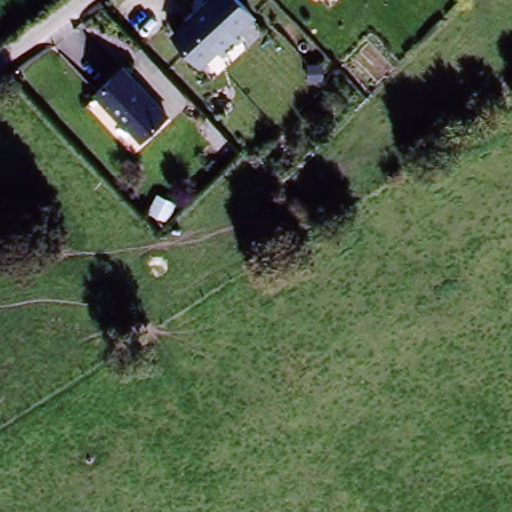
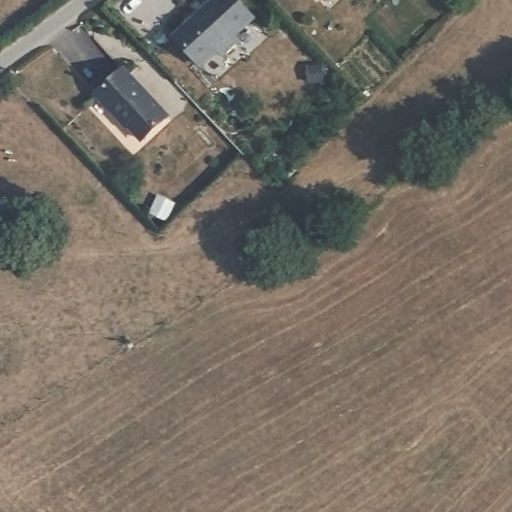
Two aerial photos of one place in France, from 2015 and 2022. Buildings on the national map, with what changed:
unchanged [(237,35),(243,42),(222,62),(215,54),(200,67),(172,37),(210,0),(240,0),(255,17),(237,35)]
unchanged [(316,0),(318,0),(317,1),(316,0)]
unchanged [(122,72),(165,125),(138,147),(112,114),(107,116),(92,97),(122,72)]

